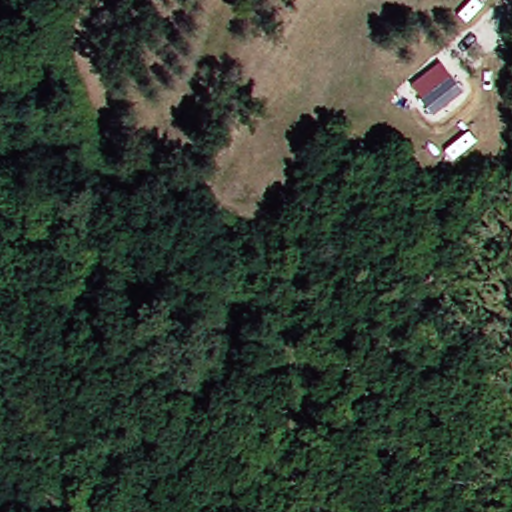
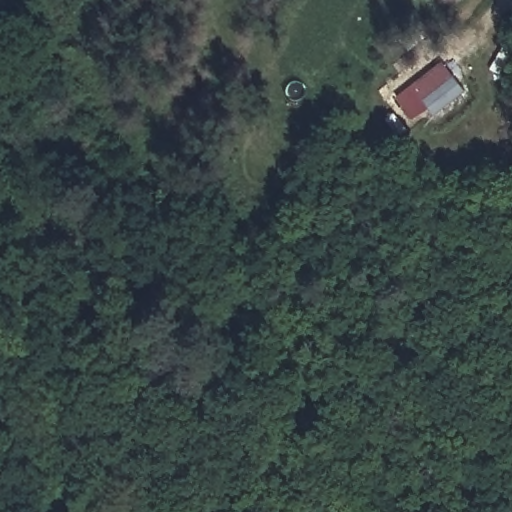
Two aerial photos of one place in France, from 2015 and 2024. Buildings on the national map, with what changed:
unchanged [(475,88),(447,115),(435,101),(436,100),(425,88),(451,62),(475,88)]

